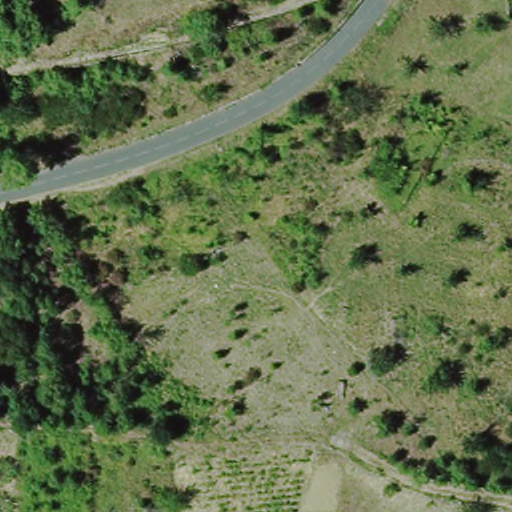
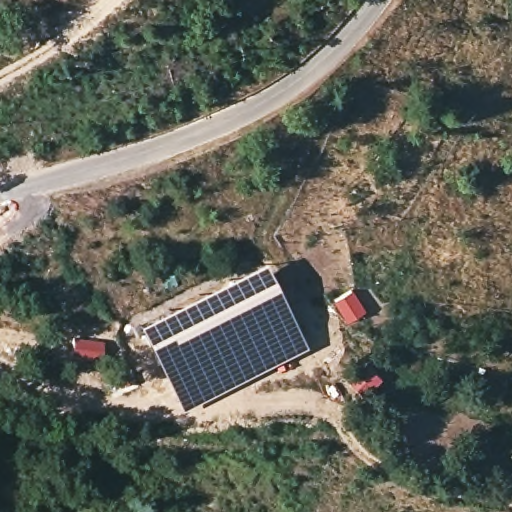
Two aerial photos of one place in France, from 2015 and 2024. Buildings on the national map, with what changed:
new [(262,262),(306,348),(255,375),(179,411),(135,326),(262,262)]
new [(352,289),(367,311),(347,324),(333,301),(352,289)]
new [(73,338),(103,341),(102,362),(71,362),(73,338)]
new [(368,362),(382,379),(361,396),(347,380),(368,362)]

